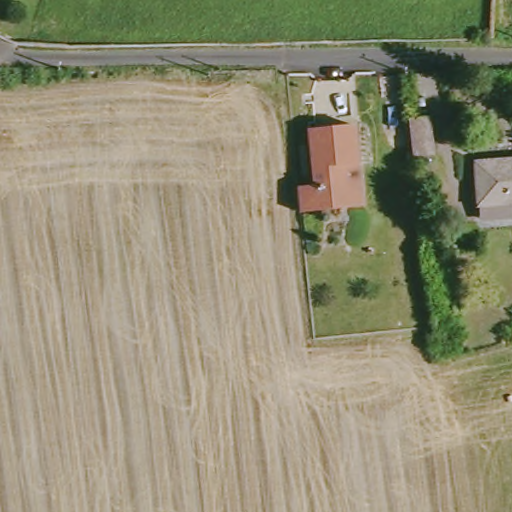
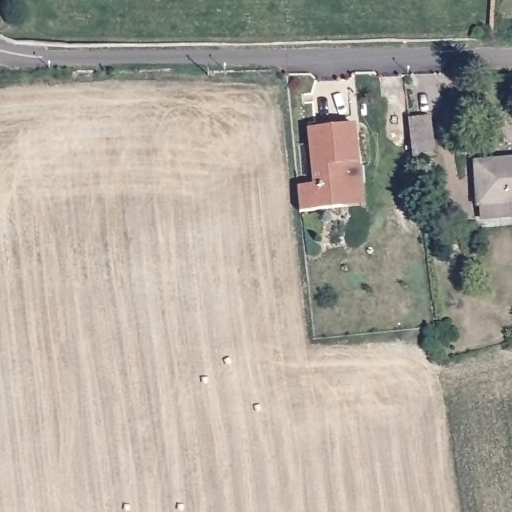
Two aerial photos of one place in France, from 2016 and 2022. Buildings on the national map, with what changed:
unchanged [(429,118),(434,157),(414,159),(410,120),(429,118)]
unchanged [(343,209),(301,213),(299,194),(298,188),(316,186),(310,130),(353,125),(361,192),(363,207),(343,209)]
unchanged [(474,206),(471,163),(512,159),(512,203),(474,206)]
unchanged [(506,205),(507,218),(478,220),(477,207),(506,205)]

